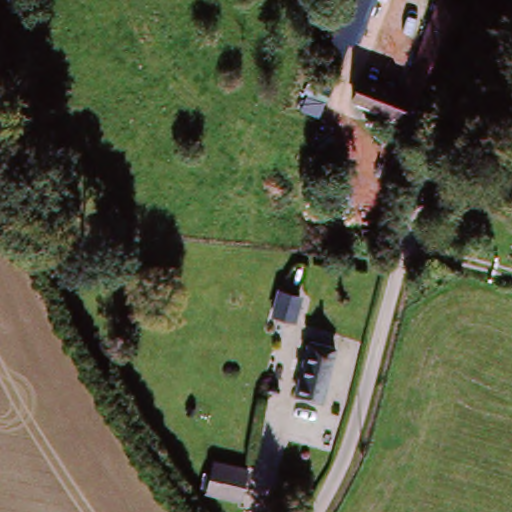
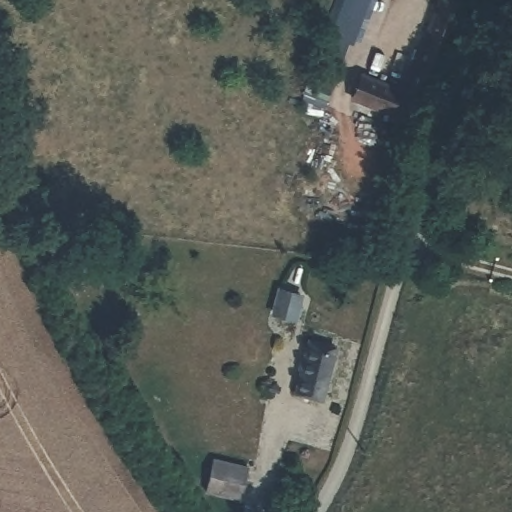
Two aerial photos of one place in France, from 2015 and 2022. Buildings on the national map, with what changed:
unchanged [(425,100),(399,86),(441,2),(466,15),(425,100)]
unchanged [(387,120),(349,101),(359,78),(396,97),(387,120)]
unchanged [(324,407),(296,401),(309,339),(336,345),(324,407)]
unchanged [(251,483),(216,477),(220,458),(254,465),(251,483)]

